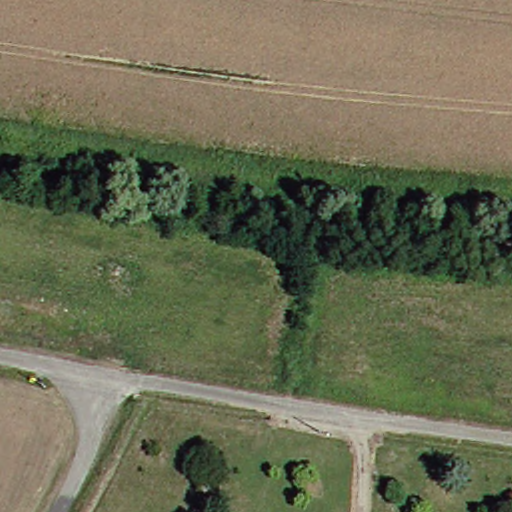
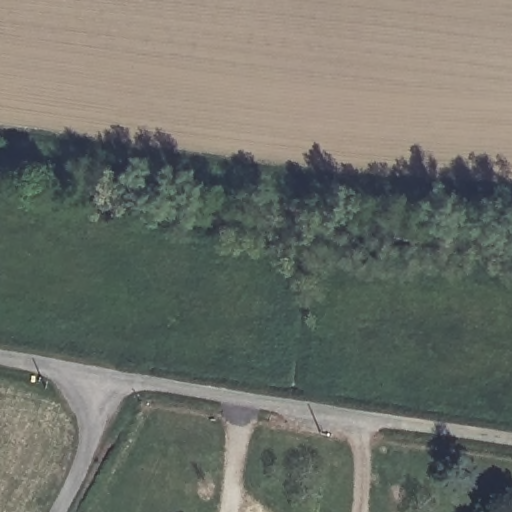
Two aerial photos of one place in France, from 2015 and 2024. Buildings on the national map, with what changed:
[]

